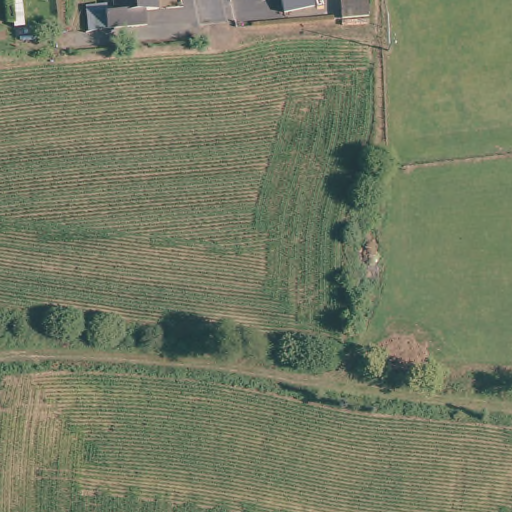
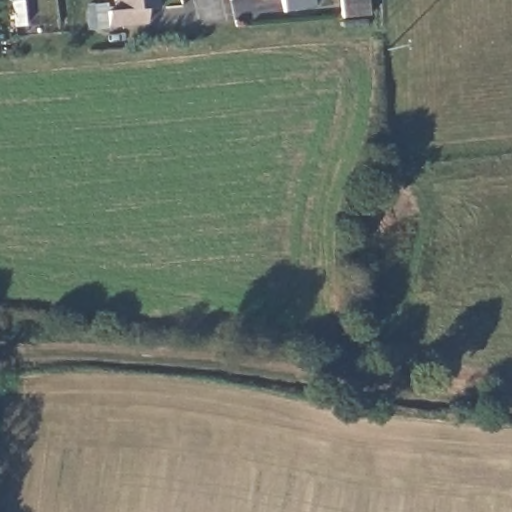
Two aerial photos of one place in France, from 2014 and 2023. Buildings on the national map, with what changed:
unchanged [(154,14),(114,19),(112,5),(119,4),(118,0),(152,0),(154,14)]
unchanged [(317,2),(287,9),(286,0),(317,0),(317,2)]
unchanged [(341,15),(339,0),(365,0),(367,13),(341,15)]

